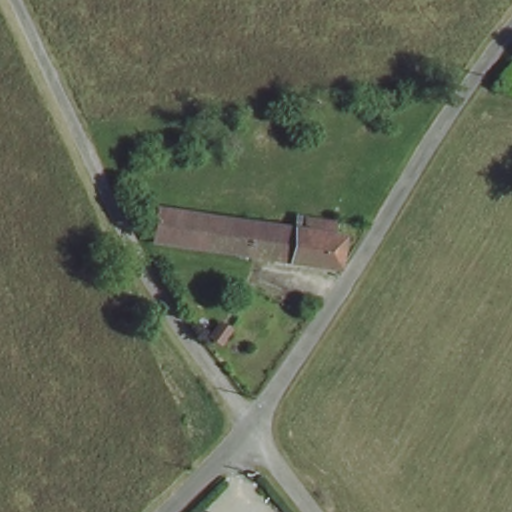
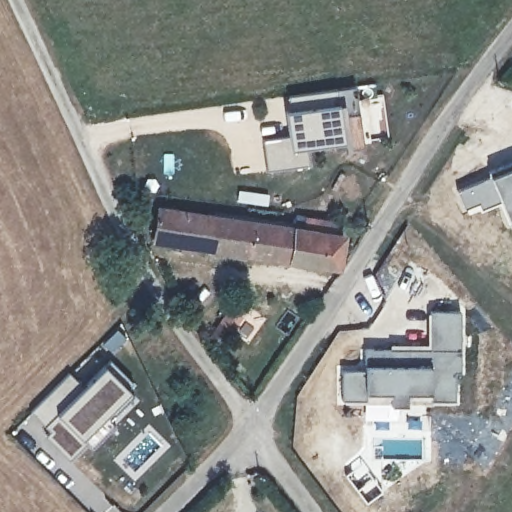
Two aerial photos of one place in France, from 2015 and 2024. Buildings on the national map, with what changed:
new [(355,86),(365,145),(345,148),(305,147),(290,149),(288,134),(283,95),(355,86)]
new [(288,134),(290,149),(305,147),(308,164),(265,171),(260,139),(288,134)]
new [(512,165),(512,225),(512,223),(508,225),(498,203),(480,211),(478,207),(465,213),(455,189),(512,165)]
unchanged [(297,235),(297,228),(330,231),(328,241),(338,243),(334,270),(153,244),(157,217),(297,235)]
new [(405,403),(388,402),(344,401),(342,398),(341,370),(365,364),(365,348),(389,348),(389,343),(427,344),(427,314),(429,313),(429,310),(459,310),(458,371),(453,371),(453,400),(405,403)]
new [(68,366),(82,377),(102,356),(128,380),(78,427),(89,439),(70,456),(40,425),(25,409),(68,366)]

